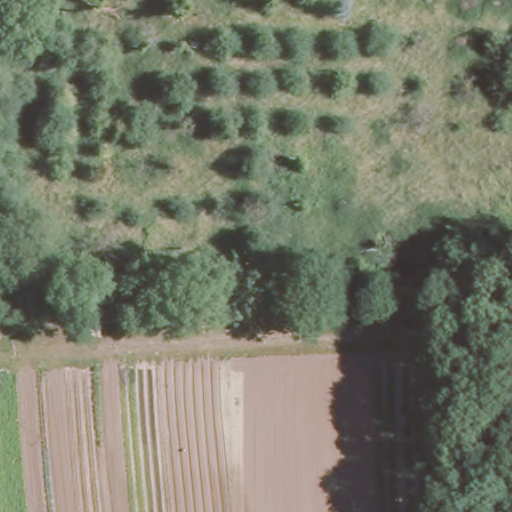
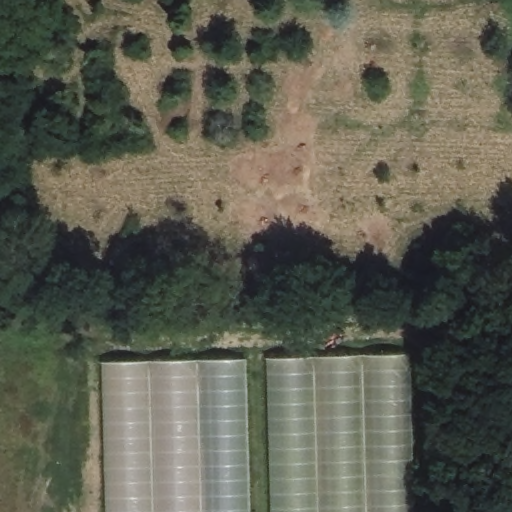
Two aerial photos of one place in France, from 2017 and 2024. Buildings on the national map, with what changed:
new [(406,358),(411,512),(266,512),(260,357),(406,358)]
new [(104,362),(247,359),(250,512),(107,512),(104,362)]

